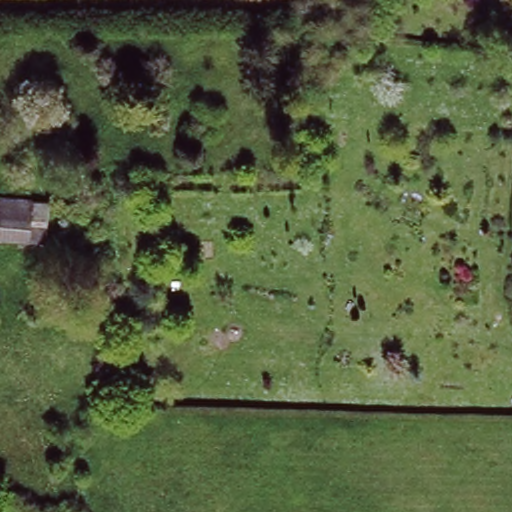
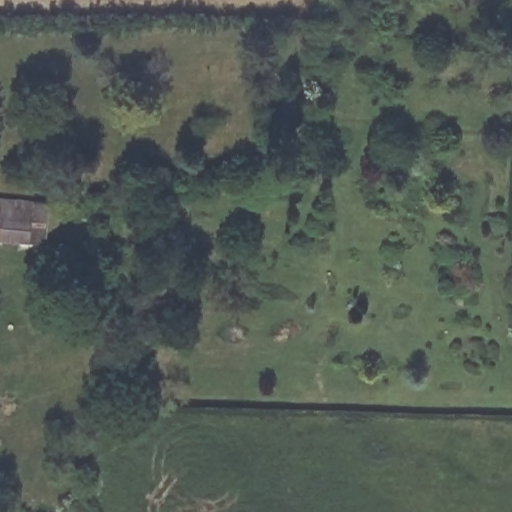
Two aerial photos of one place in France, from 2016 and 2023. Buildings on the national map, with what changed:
unchanged [(43,248),(0,245),(0,204),(47,208),(43,248)]
unchanged [(102,287),(100,316),(85,315),(86,286),(102,287)]

